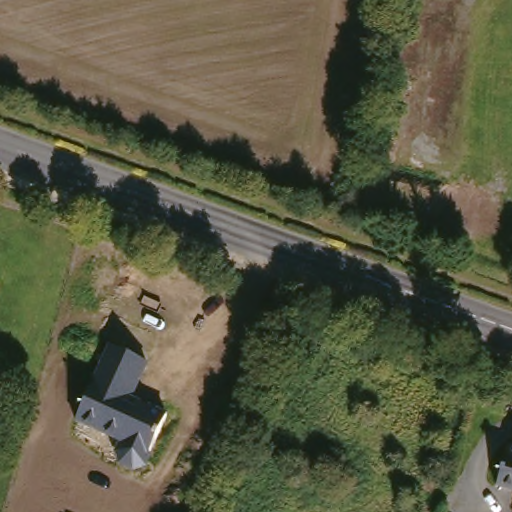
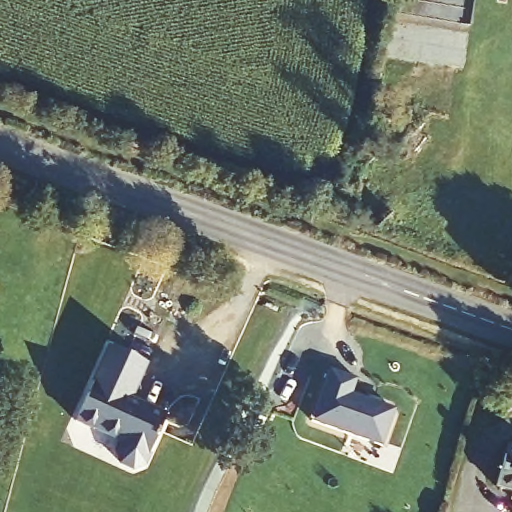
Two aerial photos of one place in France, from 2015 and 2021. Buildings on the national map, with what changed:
unchanged [(148,363),(134,398),(166,414),(146,466),(134,472),(119,465),(114,452),(118,442),(75,421),(107,345),(148,363)]
new [(357,379),(353,394),(396,408),(382,448),(311,422),(330,367),(357,379)]
unchanged [(512,451),(512,505),(511,504),(511,498),(494,492),(507,449),(512,451)]

